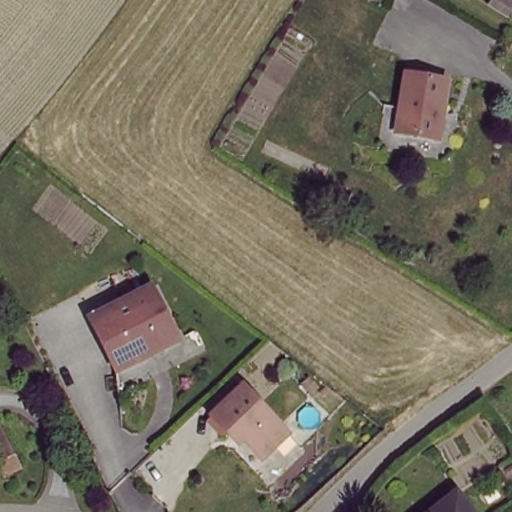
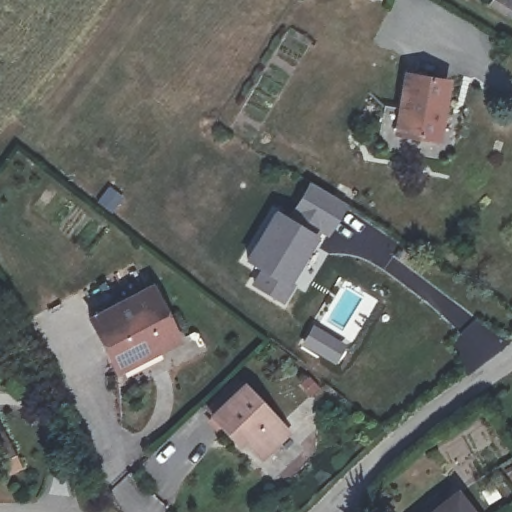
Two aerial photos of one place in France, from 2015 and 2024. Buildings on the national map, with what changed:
unchanged [(395,137),(404,76),(449,85),(439,144),(395,137)]
new [(346,205),(327,236),(320,231),(316,237),(288,282),(295,286),(282,305),(251,284),(259,269),(244,258),(276,208),(286,216),(309,183),(346,205)]
unchanged [(111,370),(88,322),(151,292),(179,347),(159,357),(115,379),(111,370)]
unchanged [(208,422),(241,392),(286,441),(259,466),(229,435),(223,439),(208,422)]
unchanged [(23,479),(0,490),(0,434),(23,479)]
unchanged [(440,507),(457,494),(470,512),(433,512),(440,507)]

